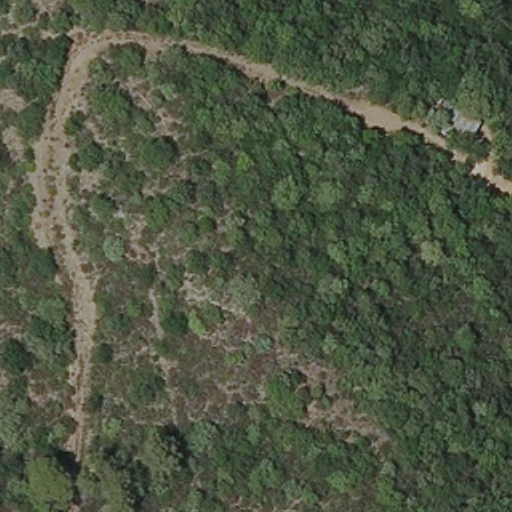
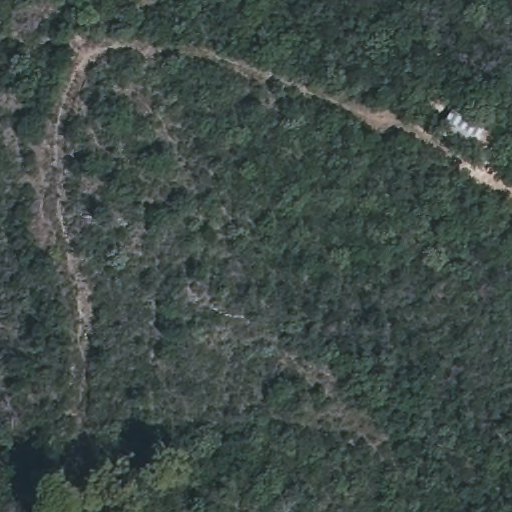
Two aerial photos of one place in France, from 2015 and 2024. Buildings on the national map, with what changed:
unchanged [(435,129),(440,119),(476,139),(470,148),(435,129)]

